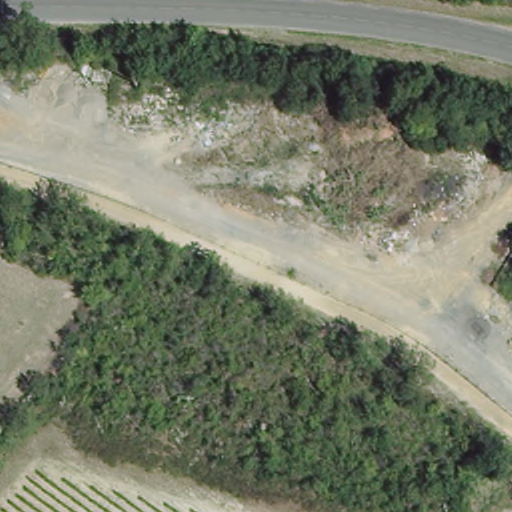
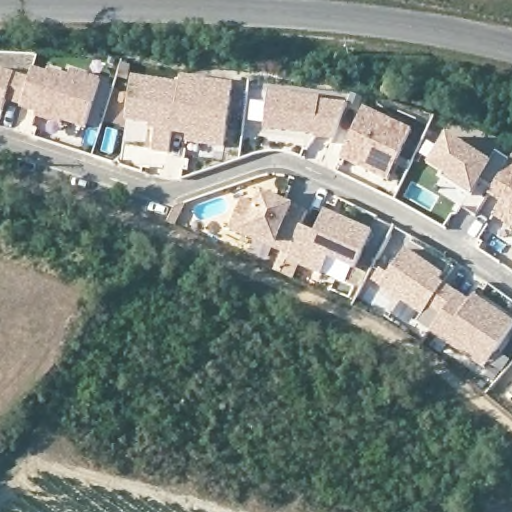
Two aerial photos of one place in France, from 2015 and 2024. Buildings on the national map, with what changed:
new [(87,128),(64,122),(62,125),(37,116),(38,112),(6,99),(1,112),(0,111),(0,68),(33,78),(36,67),(50,72),(51,68),(71,75),(73,70),(101,78),(87,128)]
new [(225,148),(188,142),(188,135),(175,133),(170,154),(154,151),(156,130),(150,128),(151,124),(128,120),(135,76),(181,83),(183,75),(234,84),(225,148)]
new [(322,97),(321,100),(347,103),(334,138),(316,138),(316,134),(264,128),(270,91),(322,97)]
new [(366,107),(413,129),(389,179),(343,157),(366,107)]
new [(502,203),(489,195),(494,190),(483,183),(476,195),(474,199),(440,178),(442,172),(429,165),(449,135),(493,163),(499,152),(512,162),(512,228),(494,216),(502,203)]
new [(244,198),(259,205),(265,192),(310,211),(292,254),(231,228),(244,198)]
new [(316,232),(326,210),(374,230),(355,268),(329,256),(321,275),(289,260),(292,254),(304,227),(316,232)]
new [(419,322),(423,315),(382,287),(408,248),(444,273),(441,280),(472,300),(476,294),(512,319),(512,328),(484,369),(419,322)]
new [(512,391),(512,394),(511,393),(512,391)]

